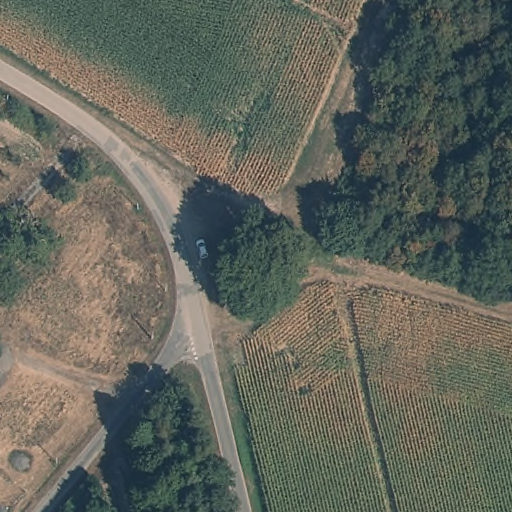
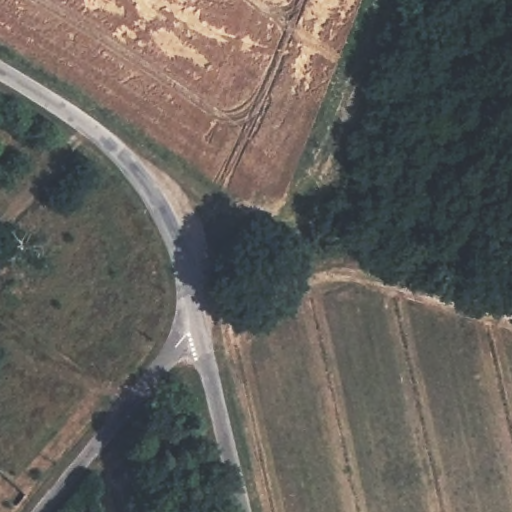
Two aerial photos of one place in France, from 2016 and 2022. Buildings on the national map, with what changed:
[]

